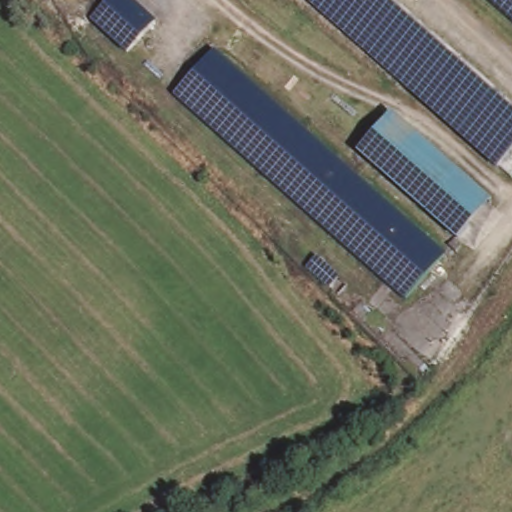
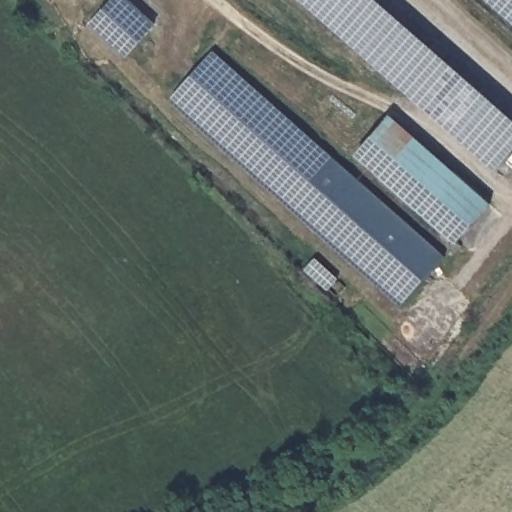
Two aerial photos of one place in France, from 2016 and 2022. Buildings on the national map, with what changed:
unchanged [(124,57),(89,25),(114,0),(125,0),(152,26),(124,57)]
unchanged [(494,167),(303,0),(382,0),(512,114),(512,148),(494,167)]
unchanged [(490,0),(512,0),(512,19),(490,0)]
unchanged [(214,46),(441,262),(399,307),(172,91),(214,46)]
unchanged [(392,119),(488,212),(455,248),(358,156),(392,119)]
unchanged [(308,261),(329,282),(320,292),(299,270),(308,261)]

